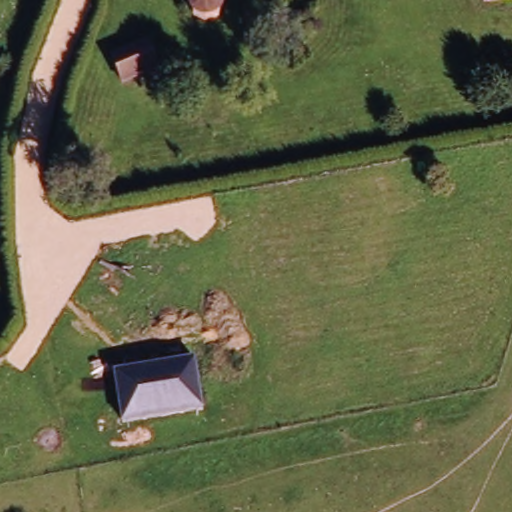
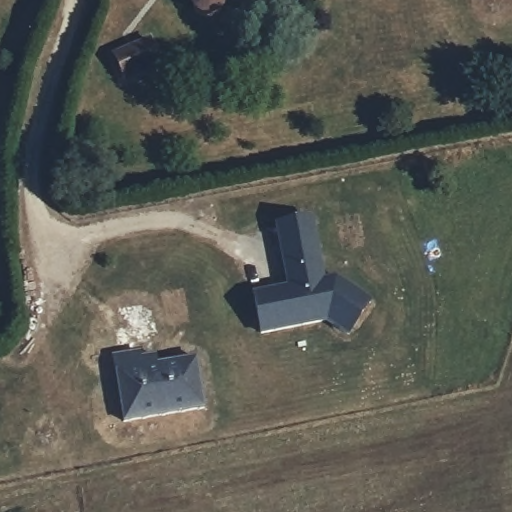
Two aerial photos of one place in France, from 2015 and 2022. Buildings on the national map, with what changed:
unchanged [(228,2),(228,4),(227,5),(226,6),(226,7),(224,9),(223,10),(221,11),(220,12),(219,14),(218,14),(216,15),(215,15),(213,15),(212,15),(211,16),(209,16),(208,16),(206,16),(204,15),(203,15),(202,15),(201,15),(199,14),(198,13),(196,12),(196,11),(194,10),(193,10),(192,9),(191,7),(191,6),(190,5),(189,4),(188,2),(188,0),(229,0),(229,1),(228,2)]
unchanged [(161,69),(123,81),(115,57),(153,45),(161,69)]
new [(279,233),(313,226),(326,287),(339,285),(374,307),(352,341),(331,327),(266,341),(259,306),(258,302),(292,295),(279,233)]
unchanged [(208,415),(123,425),(117,380),(201,370),(208,415)]

